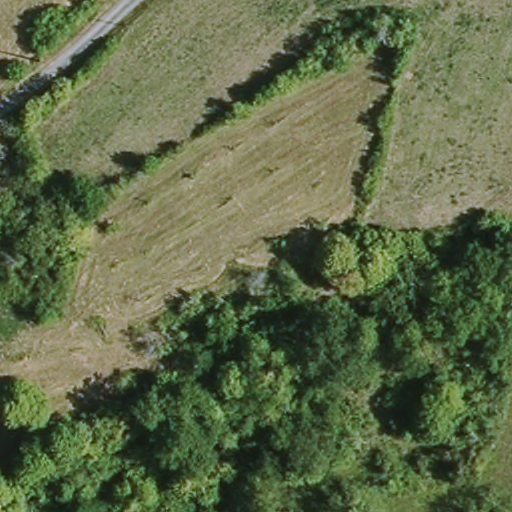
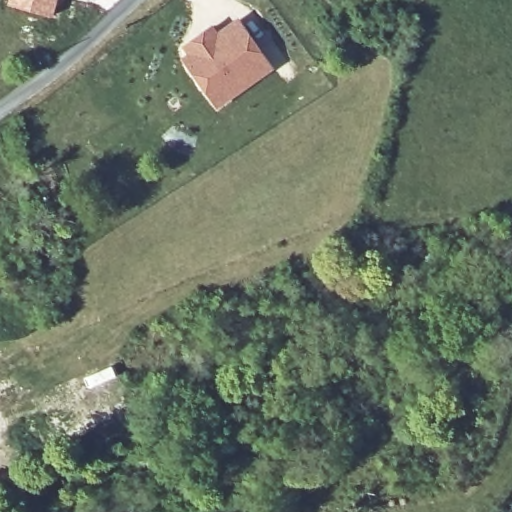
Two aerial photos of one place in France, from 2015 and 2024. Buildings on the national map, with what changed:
new [(8,0),(57,0),(51,19),(6,5),(8,0)]
new [(183,54),(179,49),(212,24),(217,30),(236,16),(274,69),(216,110),(179,57),(183,54)]

